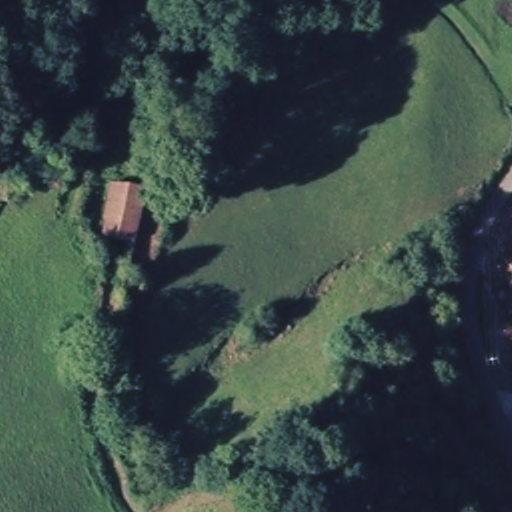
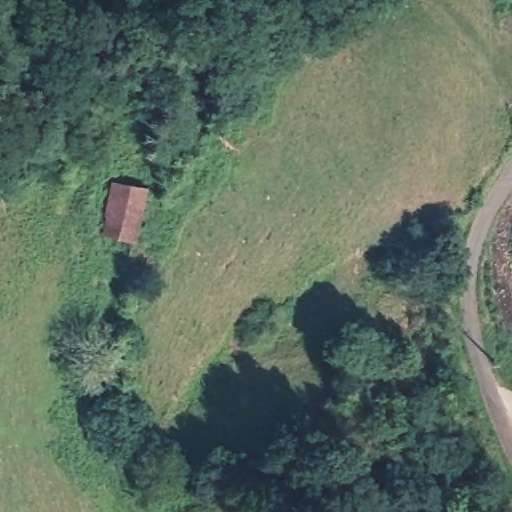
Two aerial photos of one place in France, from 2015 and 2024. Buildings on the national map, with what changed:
unchanged [(108,237),(109,182),(141,181),(137,238),(108,237)]

